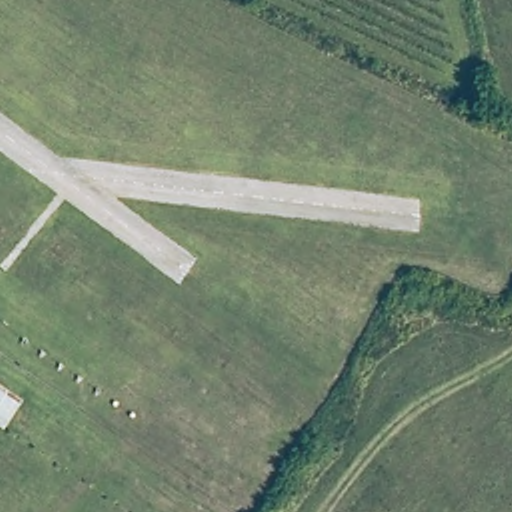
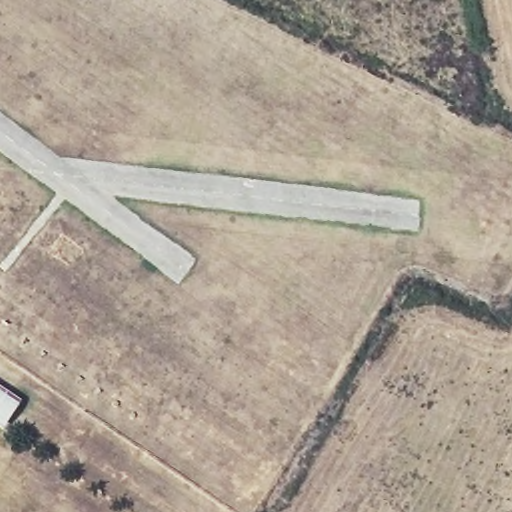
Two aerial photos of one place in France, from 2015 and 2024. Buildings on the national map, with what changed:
unchanged [(3,427),(0,425),(0,390),(20,405),(3,427)]

